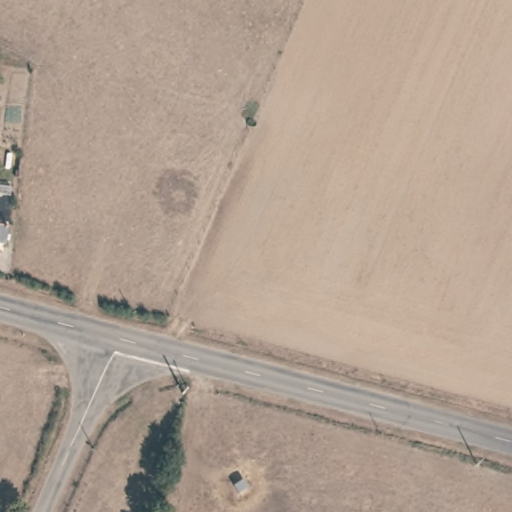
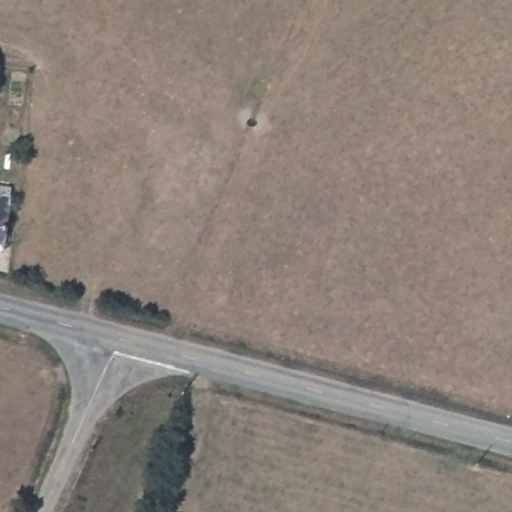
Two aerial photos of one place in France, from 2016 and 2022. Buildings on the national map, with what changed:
unchanged [(0,192),(13,195),(6,247),(0,246),(0,192)]

